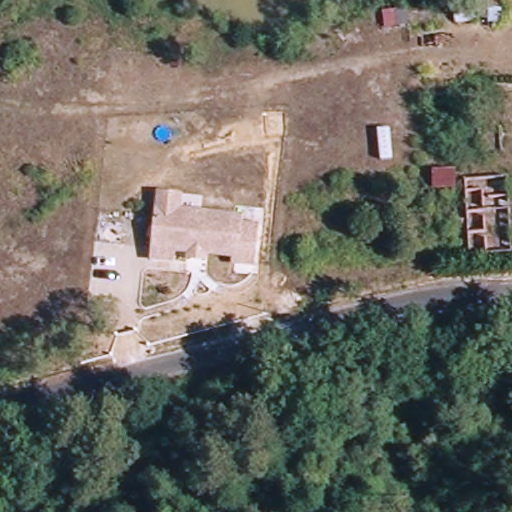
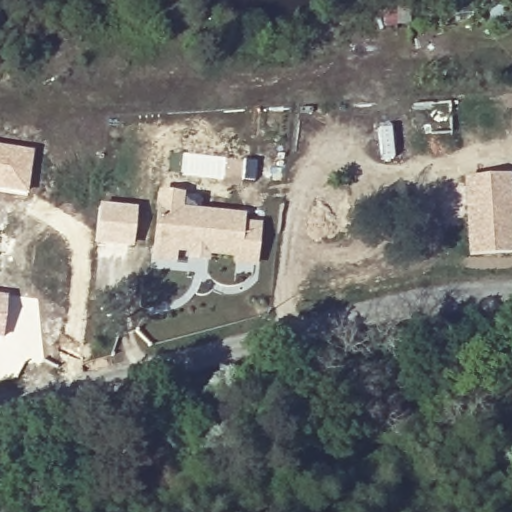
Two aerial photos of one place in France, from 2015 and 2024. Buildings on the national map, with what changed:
new [(27,195),(0,191),(0,145),(33,151),(27,195)]
new [(510,174),(512,191),(512,253),(467,257),(461,177),(510,174)]
unchanged [(462,196),(437,198),(435,176),(460,175),(462,196)]
unchanged [(185,193),(184,206),(249,213),(247,221),(265,222),(260,270),(236,266),(236,260),(213,257),(211,265),(190,262),(191,253),(180,252),(179,263),(154,260),(159,191),(185,193)]
new [(98,203),(137,207),(133,248),(94,244),(98,203)]
new [(2,340),(0,339),(0,295),(7,296),(2,340)]

